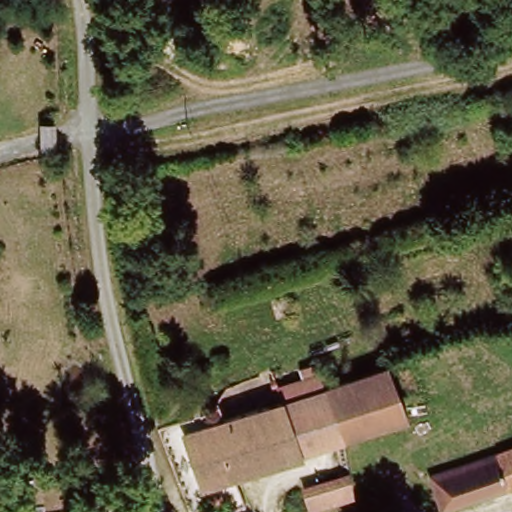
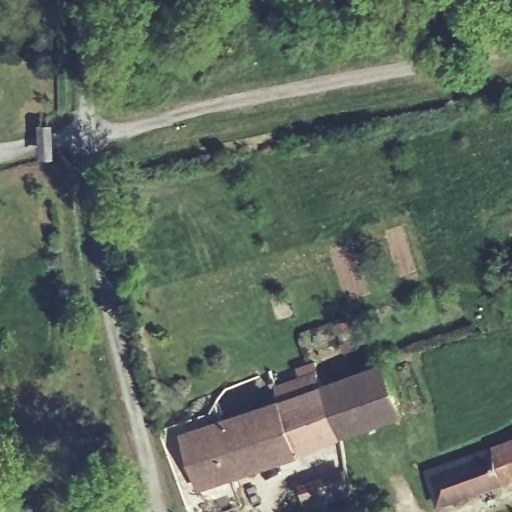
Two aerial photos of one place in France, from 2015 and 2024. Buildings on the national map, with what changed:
unchanged [(279,385),(312,372),(317,386),(380,362),(398,414),(340,438),(200,493),(179,442),(285,399),(279,385)]
unchanged [(425,474),(512,440),(512,479),(439,509),(425,474)]
unchanged [(307,482),(349,469),(350,473),(352,479),(355,478),(357,490),(312,502),(309,486),(307,482)]

